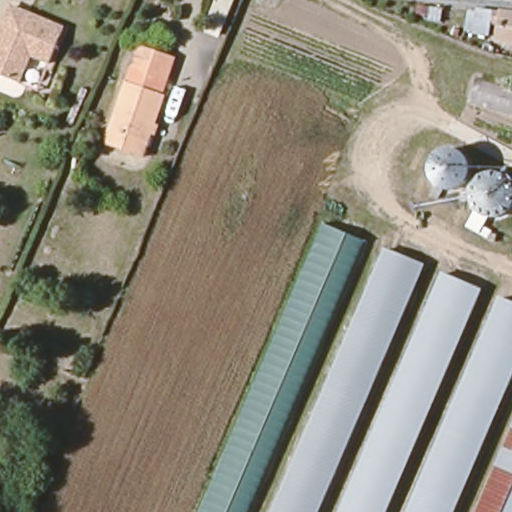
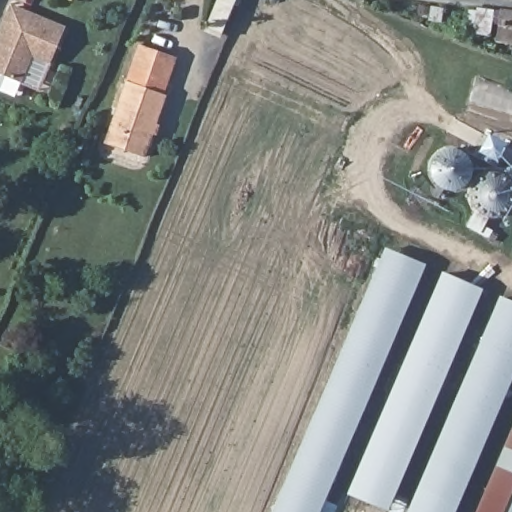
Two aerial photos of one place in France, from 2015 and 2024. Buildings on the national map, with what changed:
unchanged [(57,64),(39,55),(28,82),(0,71),(0,50),(18,6),(71,29),(57,64)]
unchanged [(496,39),(498,24),(490,23),(487,36),(473,33),(477,8),(512,13),(512,43),(496,39)]
demolished [(324,17),(317,34),(306,30),(313,12),(324,17)]
unchanged [(105,144),(138,46),(174,59),(161,93),(165,95),(142,157),(105,144)]
new [(510,176),(512,179),(512,212),(511,214),(503,217),(497,218),(487,217),(481,214),(474,208),(471,201),(471,191),(464,187),(457,189),(450,189),(442,188),(435,182),(432,176),(431,168),(432,160),(436,155),(442,150),(451,148),(460,149),(466,152),(470,158),(472,166),(472,172),(480,175),(483,172),(490,171),(497,170),(504,172),(510,176)]
demolished [(364,241),(250,512),(197,512),(319,220),(364,241)]
unchanged [(274,512),(383,245),(422,261),(319,512),(274,512)]
unchanged [(346,512),(442,279),(480,294),(390,512),(346,512)]
unchanged [(415,512),(501,303),(512,308),(512,382),(458,512),(415,512)]
unchanged [(482,512),(512,438),(512,512),(482,512)]

